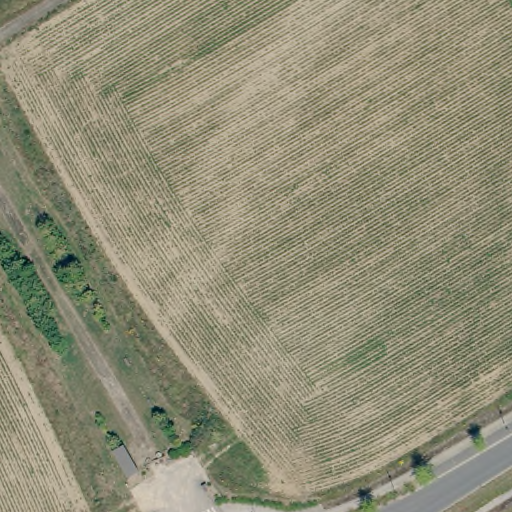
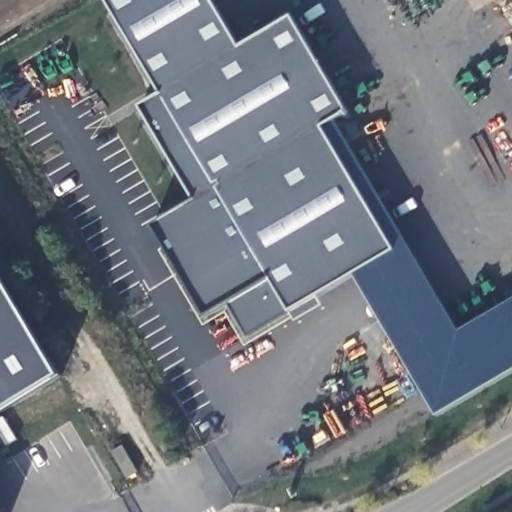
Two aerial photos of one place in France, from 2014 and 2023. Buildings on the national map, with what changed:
new [(295,16),(351,112),(325,127),(397,250),(248,336),(228,303),(207,316),(152,225),(196,199),(141,106),(163,93),(108,0),(215,0),(243,46),(295,16)]
new [(397,250),(425,292),(381,317),(355,273),(397,250)]
new [(0,413),(0,270),(62,375),(0,413)]
new [(438,415),(381,317),(425,292),(482,390),(438,415)]
new [(512,312),(512,372),(482,390),(456,345),(512,312)]
new [(4,512),(0,512),(0,506),(4,512)]

